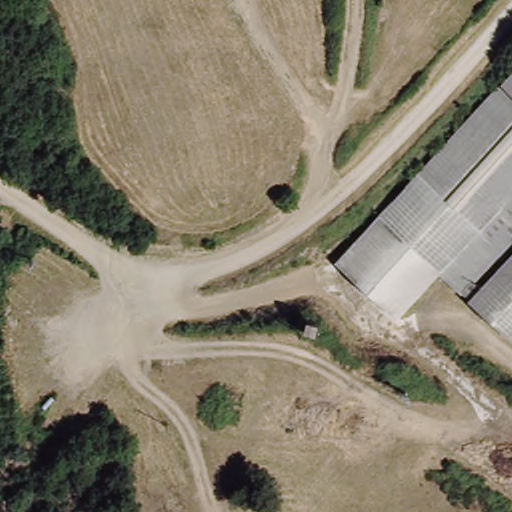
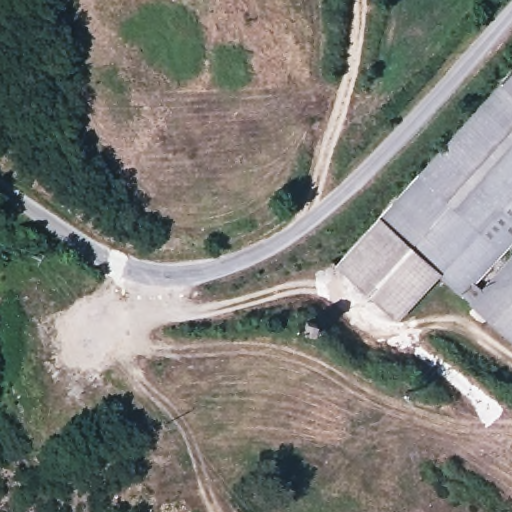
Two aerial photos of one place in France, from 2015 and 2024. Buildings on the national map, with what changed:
unchanged [(512,85),(509,82),(512,78),(512,85)]
unchanged [(380,220),(509,82),(512,85),(512,282),(457,287),(440,273),(380,220)]
unchanged [(440,273),(397,324),(335,266),(380,220),(440,273)]
unchanged [(512,334),(510,336),(457,287),(512,282),(512,334)]
unchanged [(512,337),(510,336),(512,334),(512,337)]

